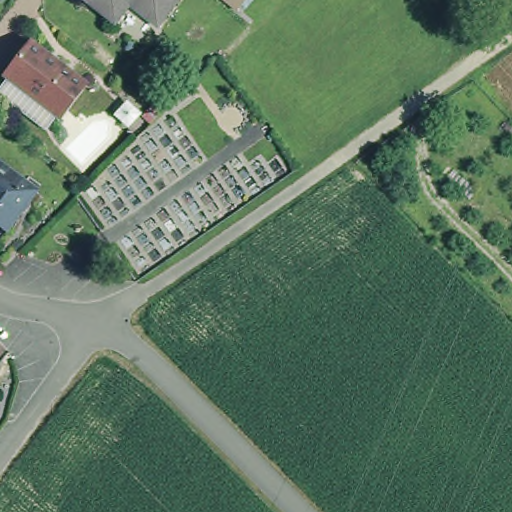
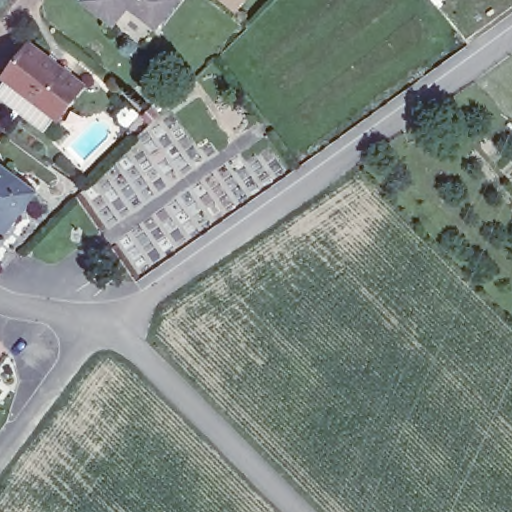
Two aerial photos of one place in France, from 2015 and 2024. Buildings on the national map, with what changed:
unchanged [(86,4),(90,0),(186,0),(161,31),(133,8),(116,28),(86,4)]
unchanged [(248,0),(246,3),(236,15),(218,0),(248,0)]
unchanged [(0,97),(13,81),(6,76),(35,42),(89,86),(62,120),(32,96),(20,112),(0,97)]
unchanged [(2,169),(6,165),(42,195),(10,235),(0,228),(0,167),(2,169)]

